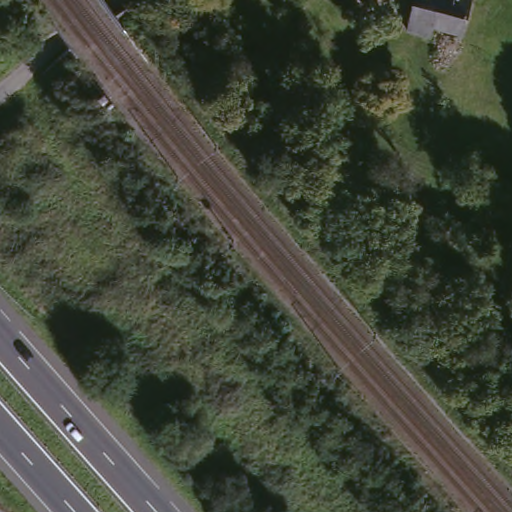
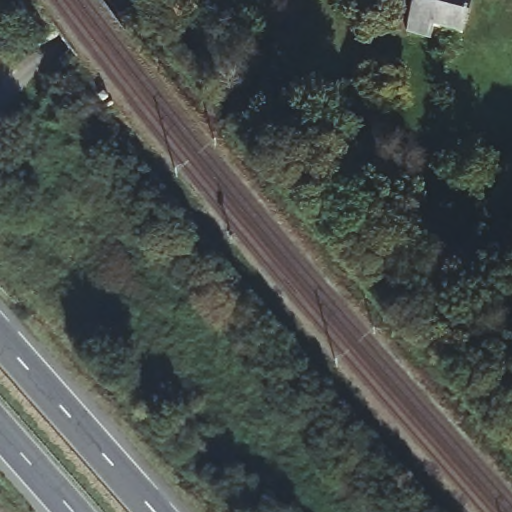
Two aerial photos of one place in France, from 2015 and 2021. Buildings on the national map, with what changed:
unchanged [(417,0),(477,0),(469,29),(462,27),(440,21),(435,34),(416,28),(411,26),(417,0)]

